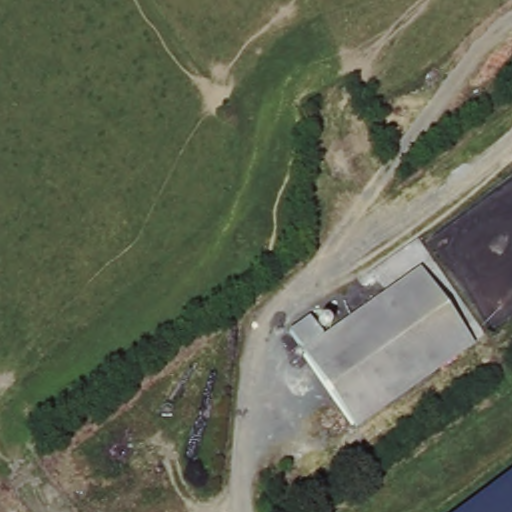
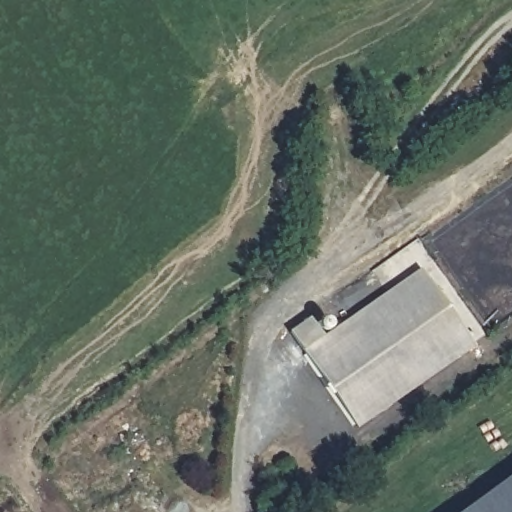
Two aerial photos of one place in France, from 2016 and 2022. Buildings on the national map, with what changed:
unchanged [(477,344),(359,426),(291,327),(311,313),(315,318),(317,321),(329,312),(335,322),(341,320),(421,266),(477,344)]
unchanged [(512,512),(461,512),(512,475),(512,512)]

